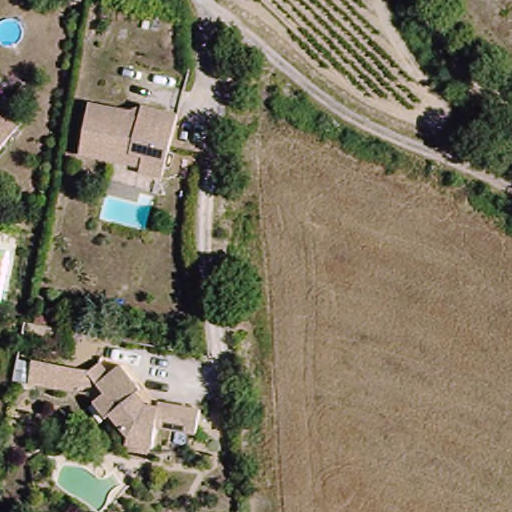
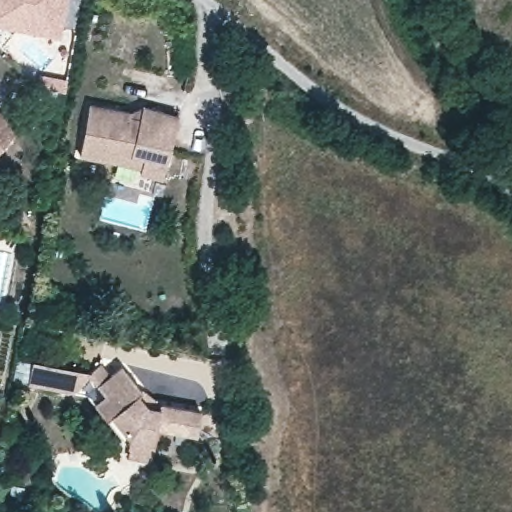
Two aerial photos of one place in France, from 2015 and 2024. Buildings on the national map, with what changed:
new [(0,25),(0,0),(66,0),(59,36),(0,25)]
unchanged [(83,155),(93,102),(128,108),(142,111),(144,106),(180,113),(165,177),(142,172),(144,166),(118,161),(83,155)]
unchanged [(17,130),(0,151),(0,116),(17,130)]
unchanged [(95,408),(105,398),(85,374),(95,364),(106,375),(118,366),(143,392),(151,401),(164,403),(200,408),(197,432),(157,427),(154,448),(137,447),(125,446),(95,408)]
unchanged [(80,398),(33,389),(35,368),(85,374),(80,398)]

